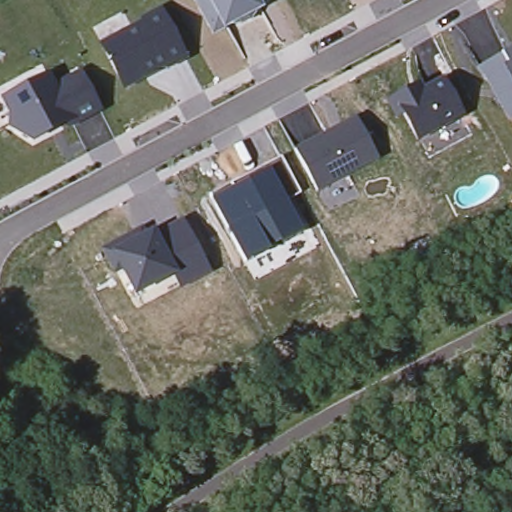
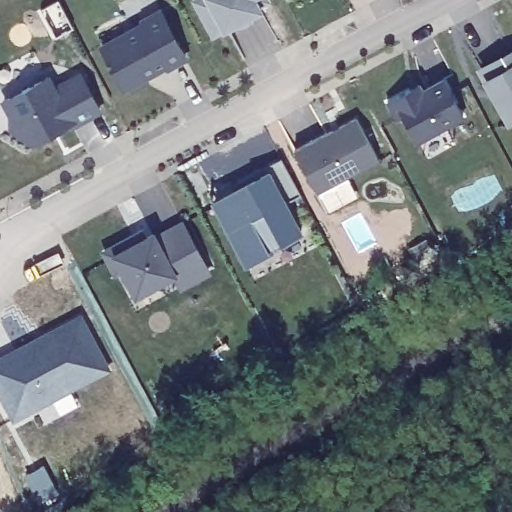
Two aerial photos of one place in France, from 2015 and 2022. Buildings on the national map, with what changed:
unchanged [(223,29),(212,35),(194,0),(259,0),(264,9),(223,29)]
unchanged [(142,24),(138,18),(160,8),(189,60),(124,93),(100,44),(142,24)]
unchanged [(512,49),(512,121),(508,124),(479,68),(512,49)]
unchanged [(102,109),(33,147),(9,129),(12,117),(4,97),(49,75),(54,83),(79,68),(102,109)]
unchanged [(466,117),(418,142),(403,117),(396,121),(386,101),(421,83),(425,89),(444,79),(466,117)]
unchanged [(379,160),(317,195),(295,152),(356,119),(379,160)]
unchanged [(297,184),(284,191),(301,223),(243,253),(207,188),(277,149),(297,184)]
unchanged [(180,289),(175,276),(134,296),(120,270),(114,273),(102,248),(143,227),(147,232),(155,229),(157,231),(183,219),(211,272),(180,289)]
new [(82,316),(112,375),(13,425),(0,399),(0,360),(82,316)]
new [(44,468),(60,497),(40,507),(25,478),(44,468)]

